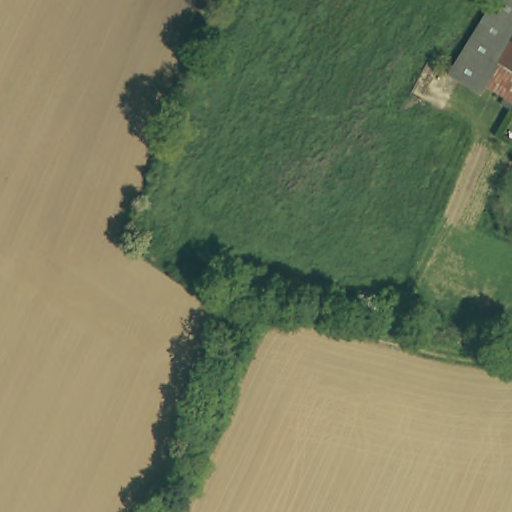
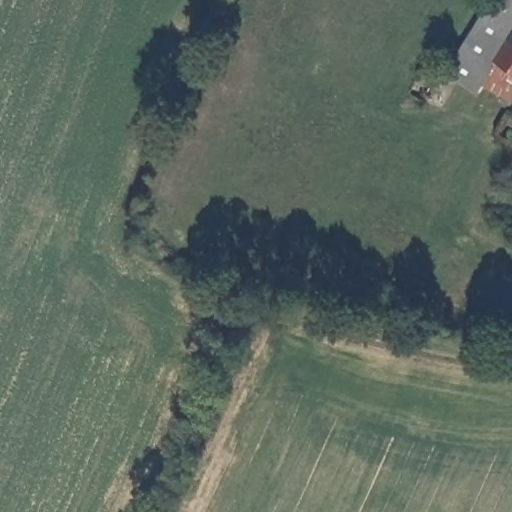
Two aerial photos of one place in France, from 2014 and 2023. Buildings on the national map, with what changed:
unchanged [(450,68),(493,0),(512,0),(512,105),(482,88),(477,94),(446,74),(450,68)]

